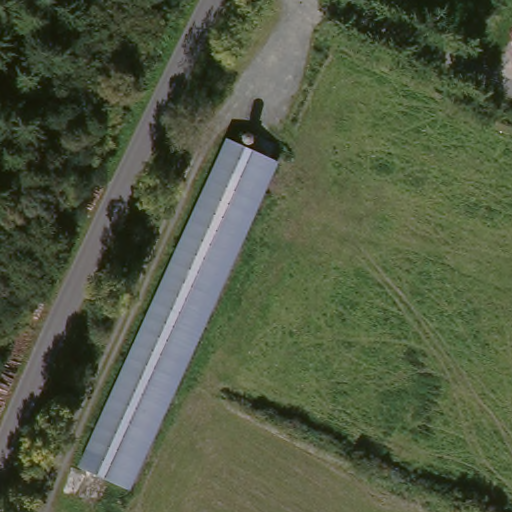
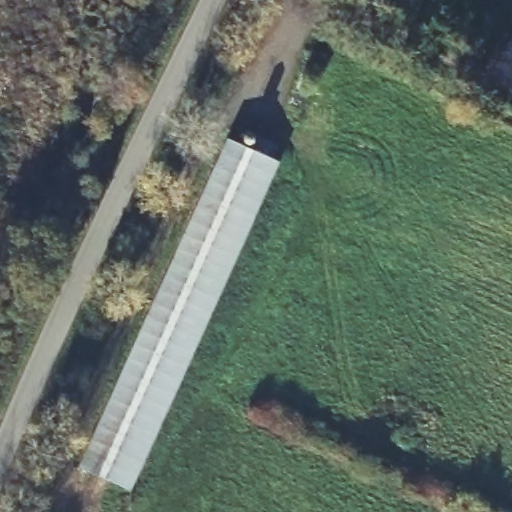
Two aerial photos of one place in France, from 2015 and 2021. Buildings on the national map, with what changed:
unchanged [(230,129),(274,145),(124,477),(82,460),(230,129)]

